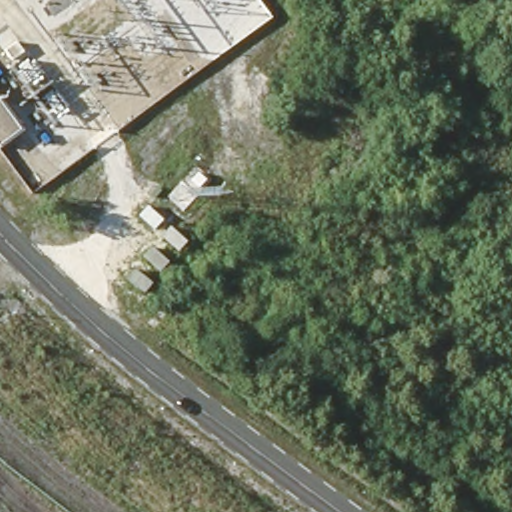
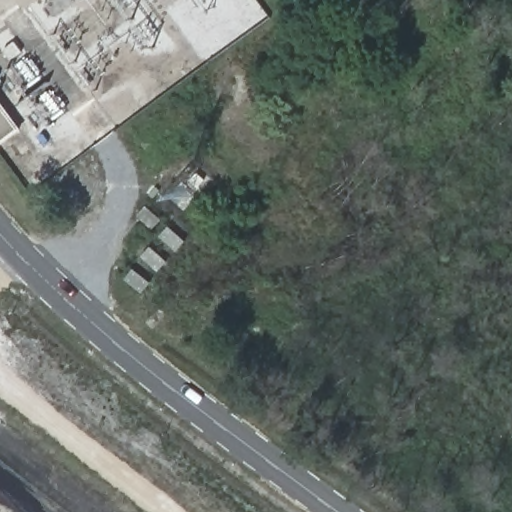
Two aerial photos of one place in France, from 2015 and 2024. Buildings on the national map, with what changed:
unchanged [(20,131),(0,145),(0,104),(20,131)]

